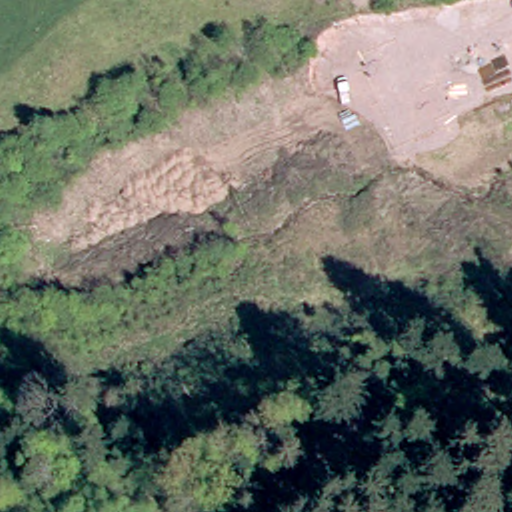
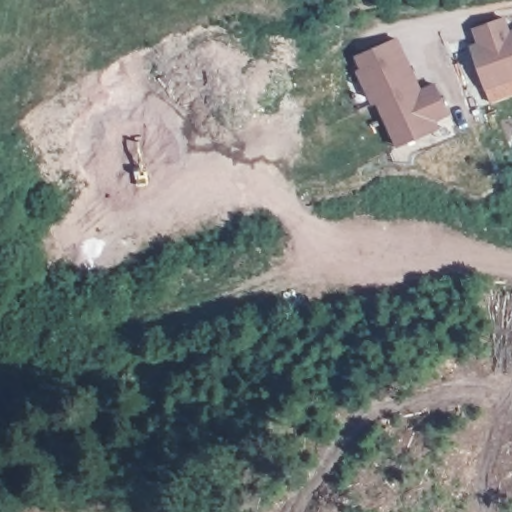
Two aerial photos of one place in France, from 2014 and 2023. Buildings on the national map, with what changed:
new [(512,30),(512,80),(486,90),(469,45),(476,43),(471,28),(506,16),(511,31),(512,30)]
new [(436,83),(449,116),(437,121),(440,129),(395,147),(376,104),(371,105),(356,71),(359,69),(354,56),(398,36),(422,89),(436,83)]

